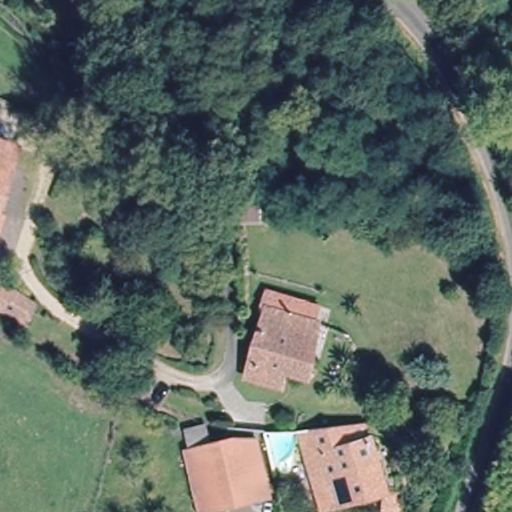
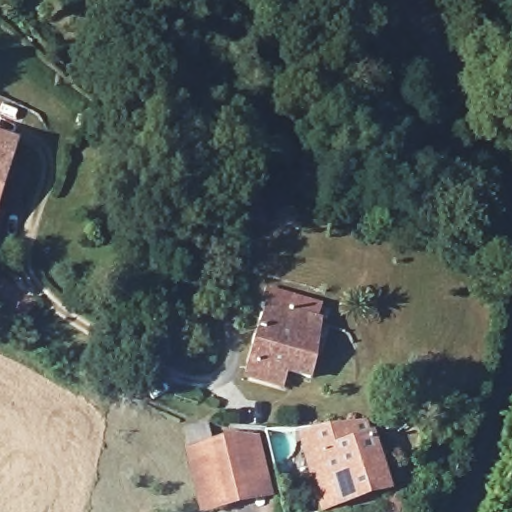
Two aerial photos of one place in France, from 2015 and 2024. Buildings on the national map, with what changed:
unchanged [(8,221),(4,238),(0,237),(0,143),(20,149),(1,220),(8,221)]
unchanged [(18,325),(0,311),(0,288),(30,310),(18,325)]
unchanged [(317,352),(311,371),(290,367),(287,380),(254,371),(257,358),(249,356),(260,304),(264,288),(318,301),(315,317),(309,350),(317,352)]
unchanged [(320,427),(365,425),(386,490),(325,512),(322,512),(294,427),(320,427)]
unchanged [(252,437),(262,490),(243,495),(232,441),(252,437)]
unchanged [(218,443),(232,441),(243,495),(219,500),(205,503),(193,448),(207,445),(218,443)]
unchanged [(380,512),(386,490),(397,492),(393,512),(380,512)]

